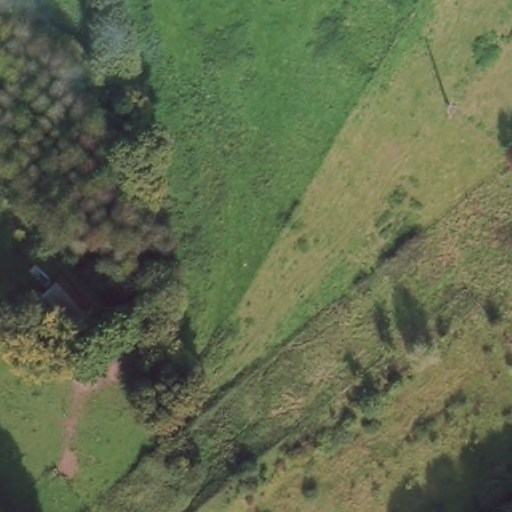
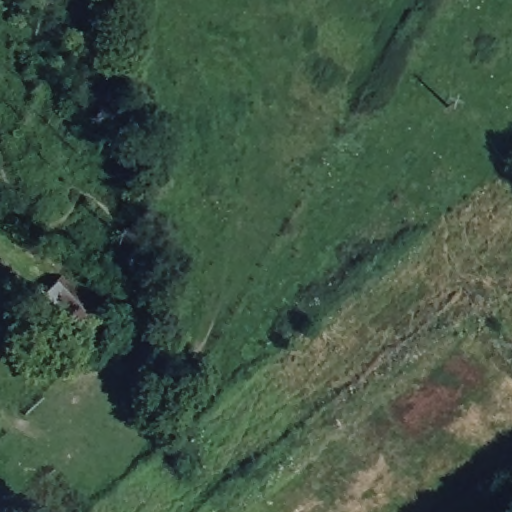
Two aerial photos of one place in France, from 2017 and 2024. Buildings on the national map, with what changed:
unchanged [(95,326),(71,345),(38,308),(67,291),(95,326)]

